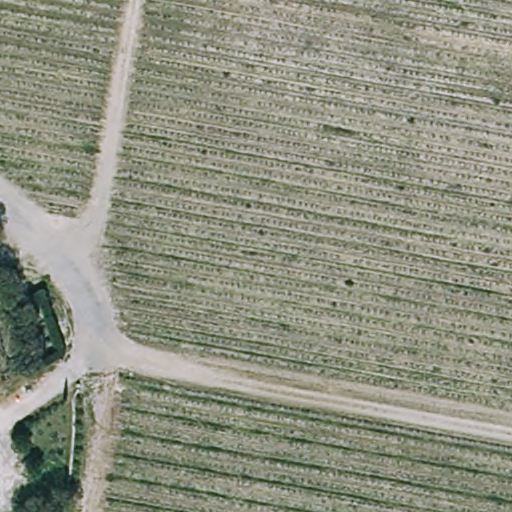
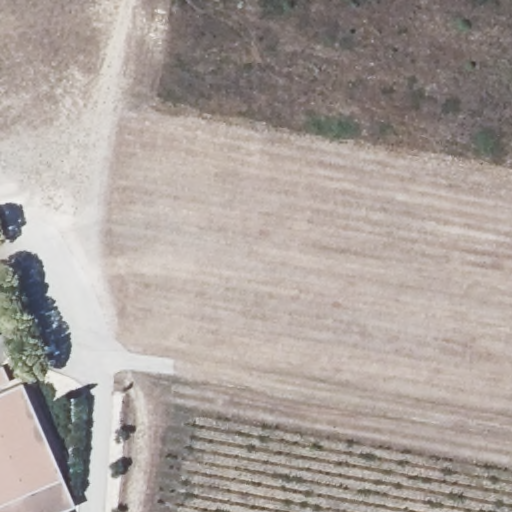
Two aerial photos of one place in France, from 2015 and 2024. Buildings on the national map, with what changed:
unchanged [(0,379),(0,368),(3,377),(0,379)]
new [(74,507),(63,512),(0,512),(0,393),(21,384),(74,507)]

